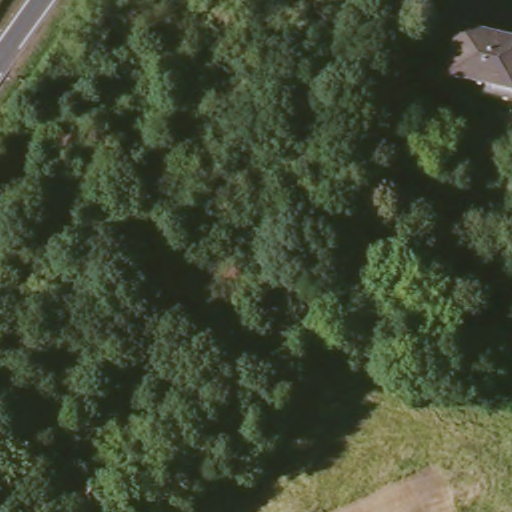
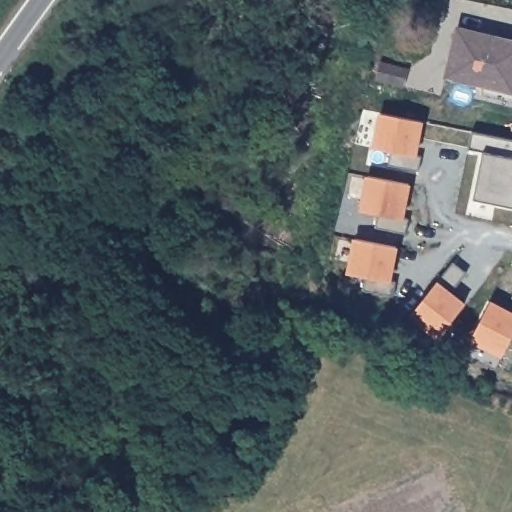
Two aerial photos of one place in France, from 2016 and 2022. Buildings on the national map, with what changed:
unchanged [(452,26),(500,37),(499,42),(512,45),(512,89),(442,73),(452,26)]
unchanged [(387,78),(390,63),(417,68),(414,84),(387,78)]
new [(418,156),(422,157),(419,169),(390,165),(393,152),(367,146),(371,113),(424,123),(418,156)]
new [(486,153),(470,151),(473,133),(512,141),(512,205),(477,198),(486,153)]
new [(404,219),(407,220),(405,233),(376,228),(378,213),(361,211),(367,176),(410,185),(404,219)]
new [(395,282),(393,296),(363,289),(367,276),(345,272),(352,236),(399,247),(392,279),(395,282)]
new [(451,291),(465,302),(438,339),(413,318),(440,280),(452,264),(466,274),(451,291)]
new [(512,338),(502,358),(471,342),(491,301),(512,311),(512,338)]

